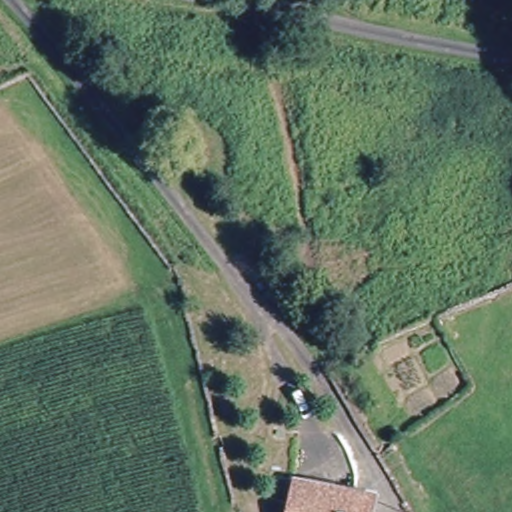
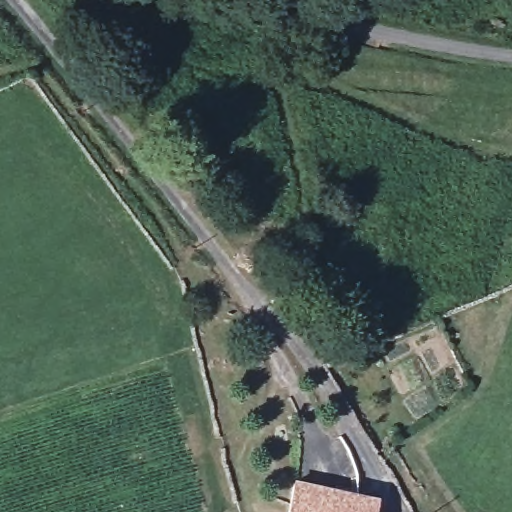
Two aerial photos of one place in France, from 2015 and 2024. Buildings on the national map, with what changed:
unchanged [(379,496),(376,512),(286,512),(292,482),(379,496)]

